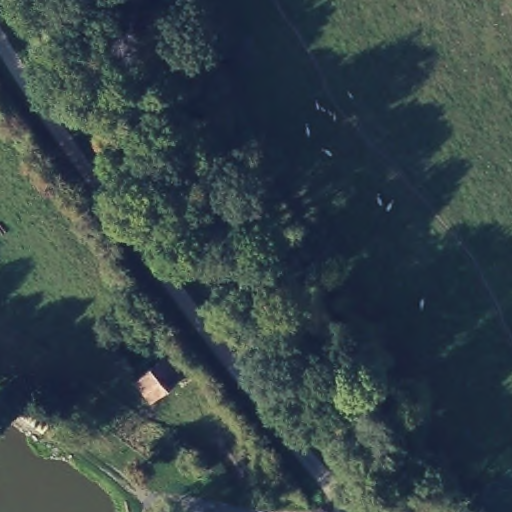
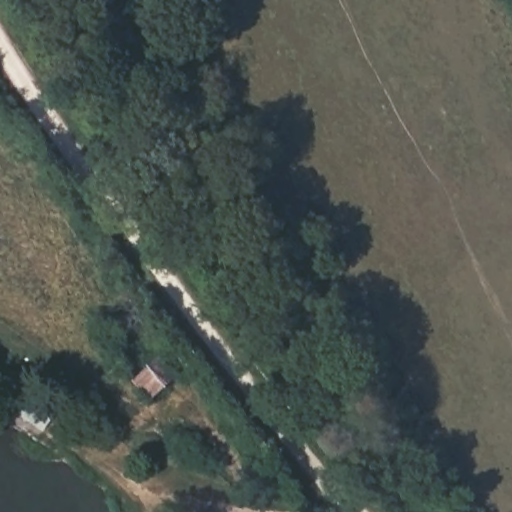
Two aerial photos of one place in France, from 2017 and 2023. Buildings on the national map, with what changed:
unchanged [(183,376),(154,400),(140,382),(169,358),(183,376)]
unchanged [(62,412),(45,431),(15,409),(32,390),(62,412)]

